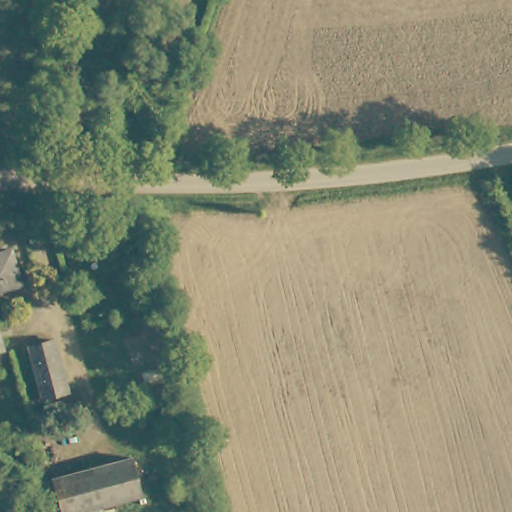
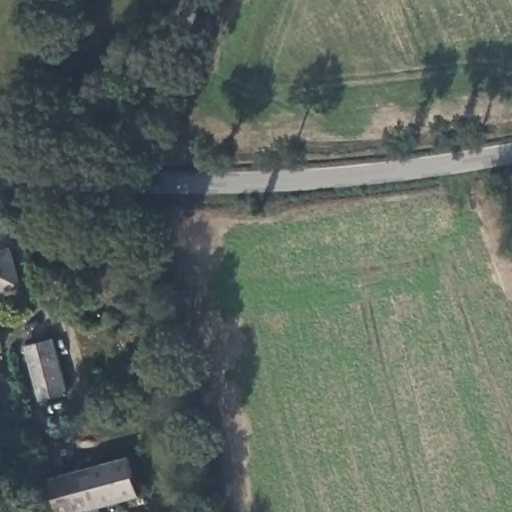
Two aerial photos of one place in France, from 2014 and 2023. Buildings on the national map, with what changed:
unchanged [(11,249),(20,284),(0,289),(0,252),(11,249)]
unchanged [(4,344),(0,345),(0,330),(4,344)]
unchanged [(52,342),(68,393),(44,399),(29,349),(52,342)]
unchanged [(134,455),(144,493),(103,505),(90,467),(134,455)]
unchanged [(79,512),(65,512),(54,476),(90,467),(103,505),(79,512)]

